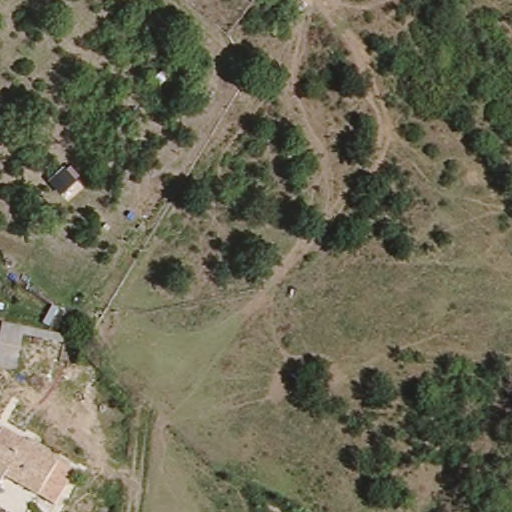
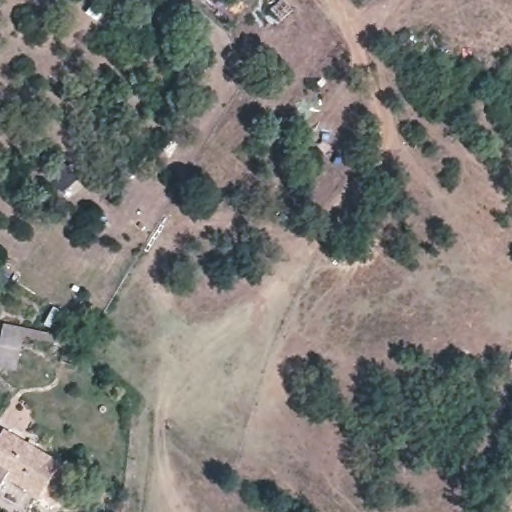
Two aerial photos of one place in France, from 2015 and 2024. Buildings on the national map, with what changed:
unchanged [(60,314),(50,332),(43,328),(53,311),(60,314)]
unchanged [(0,344),(4,327),(26,332),(65,340),(63,349),(24,341),(17,374),(0,371),(0,344)]
unchanged [(0,433),(3,428),(76,470),(57,502),(41,492),(39,495),(6,475),(4,479),(0,477),(0,433)]

